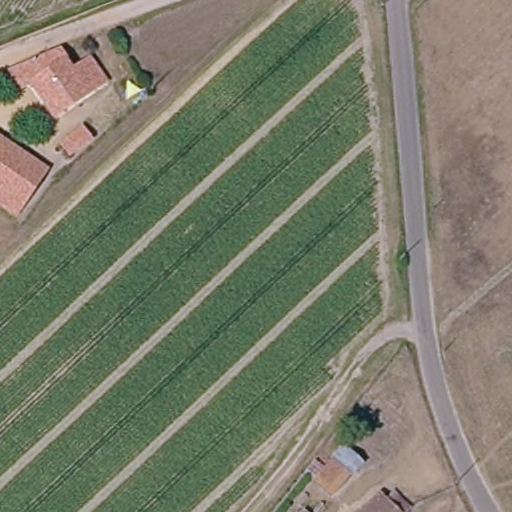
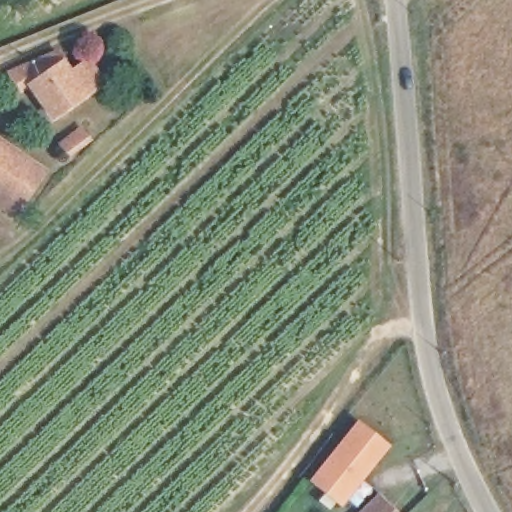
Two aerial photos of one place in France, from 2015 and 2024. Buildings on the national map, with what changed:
unchanged [(36,60),(45,73),(61,63),(85,98),(52,120),(17,68),(36,60)]
demolished [(144,136),(124,148),(106,118),(128,107),(144,136)]
unchanged [(81,132),(89,143),(67,156),(59,145),(81,132)]
unchanged [(0,140),(43,171),(21,203),(12,214),(0,205),(0,140)]
demolished [(401,343),(396,350),(390,346),(395,339),(401,343)]
new [(342,506),(310,481),(358,420),(392,447),(342,506)]
unchanged [(371,496),(386,512),(354,512),(355,511),(371,496)]

